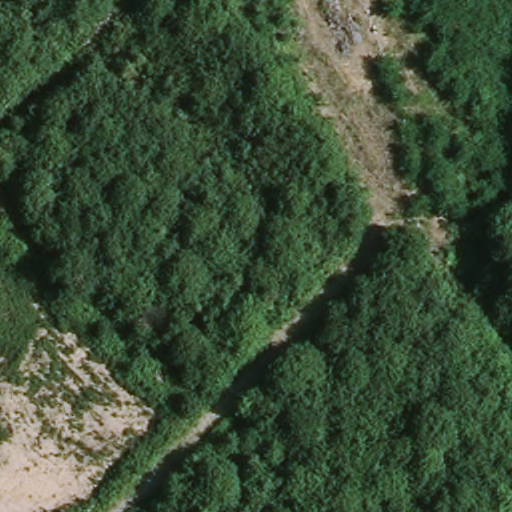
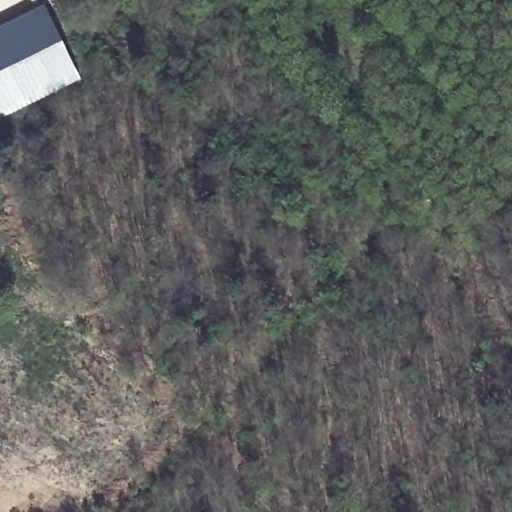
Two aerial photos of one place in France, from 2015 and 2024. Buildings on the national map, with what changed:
new [(43,10),(80,85),(0,124),(0,31),(43,10)]

